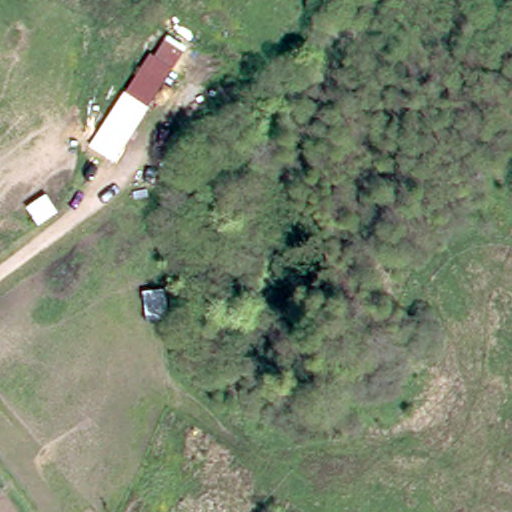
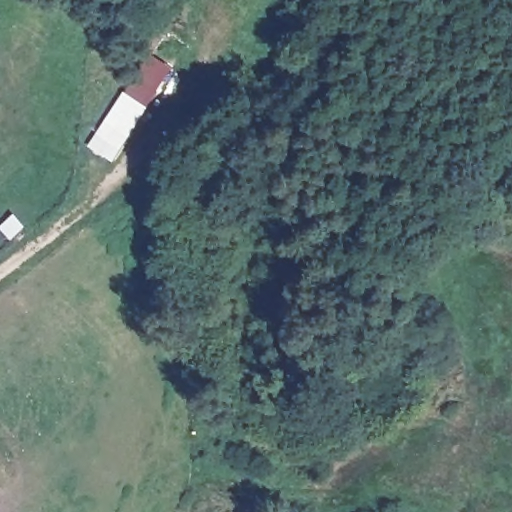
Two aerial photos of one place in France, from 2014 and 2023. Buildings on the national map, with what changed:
unchanged [(151,54),(154,56),(169,34),(188,48),(176,70),(171,68),(149,106),(126,93),(151,54)]

